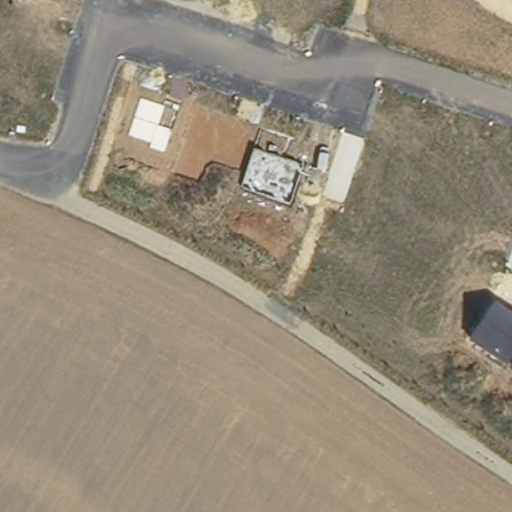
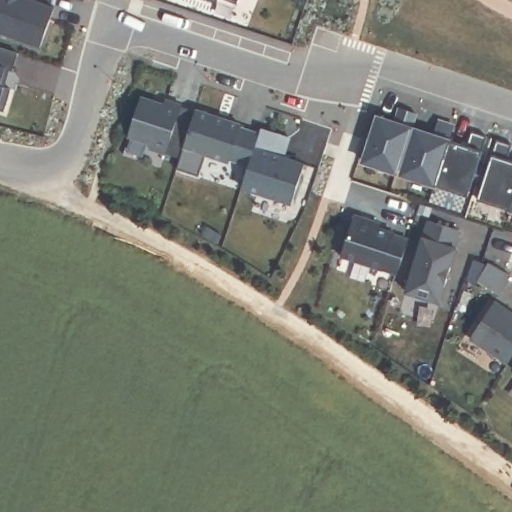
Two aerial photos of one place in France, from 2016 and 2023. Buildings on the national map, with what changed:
new [(40,48),(0,33),(0,0),(34,0),(55,8),(40,48)]
new [(214,0),(219,0),(218,1),(214,0)]
new [(230,0),(239,0),(238,3),(230,0)]
new [(11,89),(5,111),(0,110),(0,47),(19,53),(13,70),(6,68),(0,85),(5,86),(11,89)]
new [(0,85),(6,68),(10,69),(5,87),(0,85)]
new [(164,106),(165,101),(181,106),(174,131),(187,135),(180,158),(150,149),(151,144),(129,136),(141,99),(164,106)]
new [(195,111),(187,135),(174,131),(181,107),(195,111)]
new [(395,123),(400,108),(416,113),(396,173),(363,161),(368,146),(378,116),(395,123)]
new [(230,159),(229,162),(206,154),(199,177),(176,169),(196,111),(241,125),(240,129),(259,134),(249,165),(230,159)]
new [(401,174),(416,129),(433,135),(438,120),(454,125),(449,140),(467,146),(471,131),(487,136),(468,195),(401,174)]
new [(241,189),(261,129),(287,137),(281,157),(304,164),(291,205),(241,189)]
new [(368,146),(363,144),(368,130),(373,132),(368,146)]
new [(496,139),(512,144),(507,159),(512,161),(512,210),(477,199),(496,139)]
new [(341,255),(355,215),(381,224),(380,229),(395,234),(395,235),(408,240),(397,274),(341,255)]
new [(415,263),(413,262),(421,237),(423,237),(429,220),(460,230),(455,247),(457,248),(439,303),(405,292),(415,263)]
unchanged [(512,311),(512,356),(507,364),(469,337),(494,299),(512,311)]

